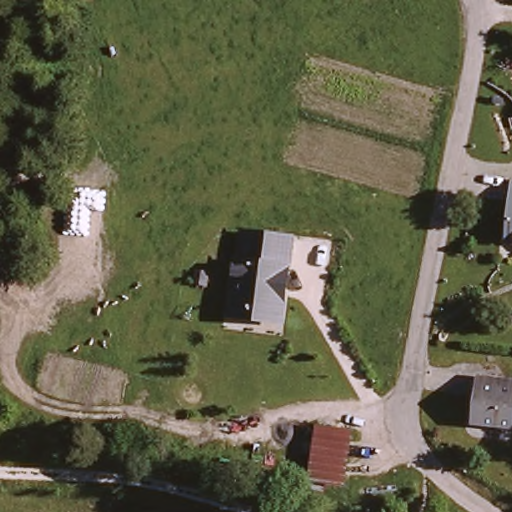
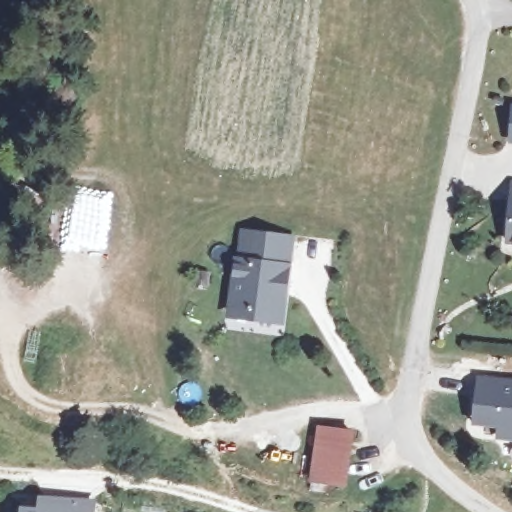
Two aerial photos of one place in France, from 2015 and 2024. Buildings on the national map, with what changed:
new [(512,103),(512,143),(507,142),(511,102),(512,103)]
unchanged [(512,245),(508,245),(512,211),(512,245)]
unchanged [(295,245),(282,327),(258,323),(251,314),(234,311),(242,265),(251,266),(254,239),(295,245)]
unchanged [(512,424),(511,432),(482,427),(484,408),(474,405),(479,377),(512,382),(512,424)]
unchanged [(329,429),(353,435),(342,488),(319,482),(329,429)]
new [(23,507),(40,508),(39,497),(96,500),(96,512),(22,512),(23,507)]

